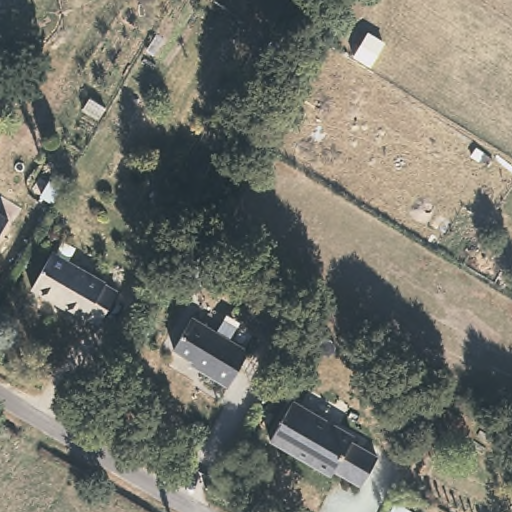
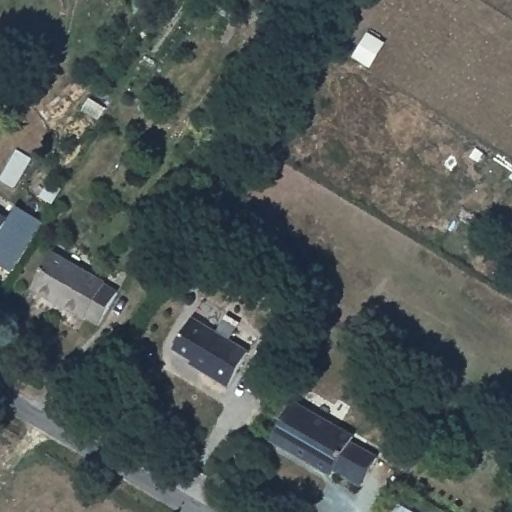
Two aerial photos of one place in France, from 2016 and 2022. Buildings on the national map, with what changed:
new [(6,216),(8,218),(14,205),(42,221),(11,273),(0,265),(0,226),(6,216)]
unchanged [(6,216),(0,226),(0,213),(6,216)]
unchanged [(100,281),(98,284),(113,292),(94,322),(81,315),(79,317),(25,285),(46,250),(100,281)]
unchanged [(244,351),(225,384),(197,369),(199,366),(169,348),(187,317),(244,351)]
unchanged [(352,434),(349,439),(375,455),(358,483),(332,467),(329,472),(309,461),(312,457),(290,445),(288,449),(269,437),(292,398),(352,434)]

